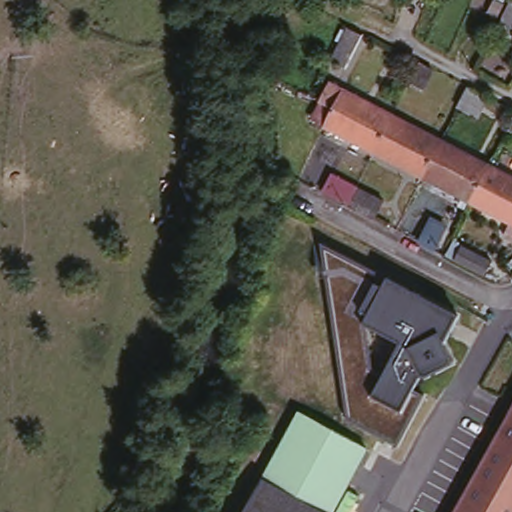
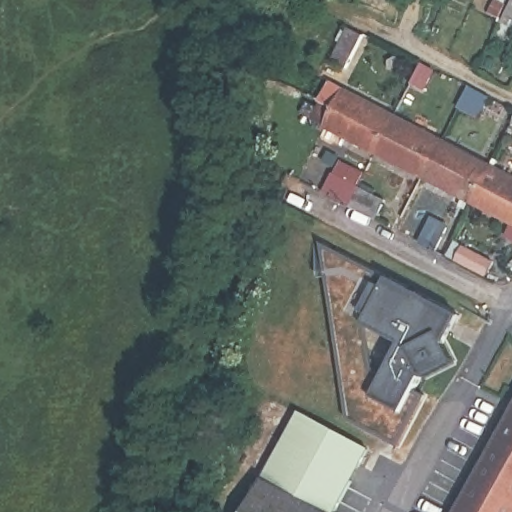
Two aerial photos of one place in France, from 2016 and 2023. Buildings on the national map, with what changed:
unchanged [(364,35),(346,69),(333,62),(350,28),(364,35)]
unchanged [(349,90),(408,120),(457,145),(505,170),(512,174),(512,238),(498,231),(505,219),(484,208),(440,185),(389,159),(337,132),(319,121),(328,104),(315,97),(325,77),(349,90)]
unchanged [(462,99),(468,85),(490,96),(481,116),(476,114),(459,104),(462,99)]
unchanged [(510,121),(512,116),(512,122),(510,121)]
unchanged [(297,179),(280,169),(288,155),(304,164),(297,179)]
unchanged [(375,219),(348,205),(322,192),(332,173),(358,186),(385,199),(375,219)]
unchanged [(433,250),(421,243),(433,219),(446,225),(445,228),(433,250)]
unchanged [(348,418),(324,244),(460,318),(446,345),(455,363),(419,379),(413,389),(421,397),(398,443),(348,418)]
unchanged [(463,245),(493,260),(485,277),(472,269),(455,261),(463,245)]
unchanged [(302,411),(366,449),(328,512),(325,512),(263,476),(302,411)]
unchanged [(501,434),(512,413),(512,512),(457,512),(501,434)]
unchanged [(325,512),(241,512),(263,476),(325,512)]

